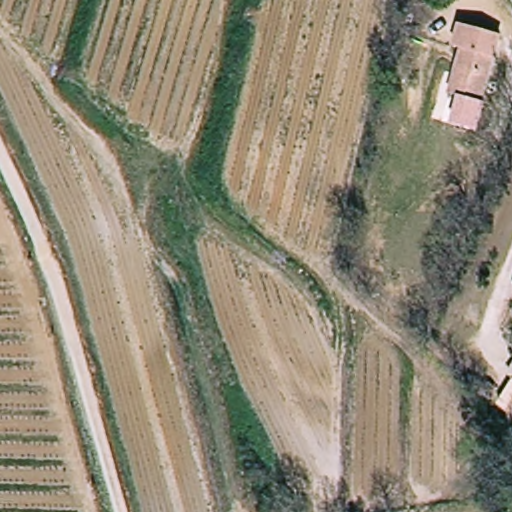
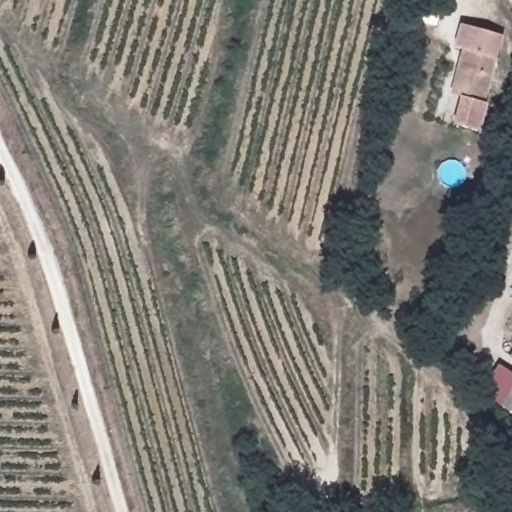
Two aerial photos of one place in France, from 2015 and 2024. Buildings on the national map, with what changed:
unchanged [(485,103),(477,131),(451,125),(460,95),(452,93),(458,67),(463,48),(457,47),(462,24),(498,31),(482,100),(482,102),(485,103)]

